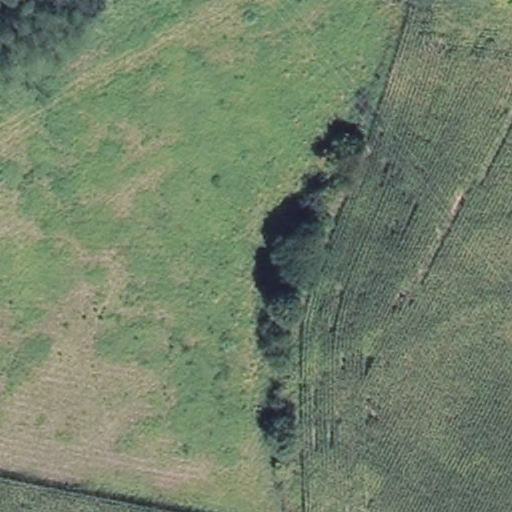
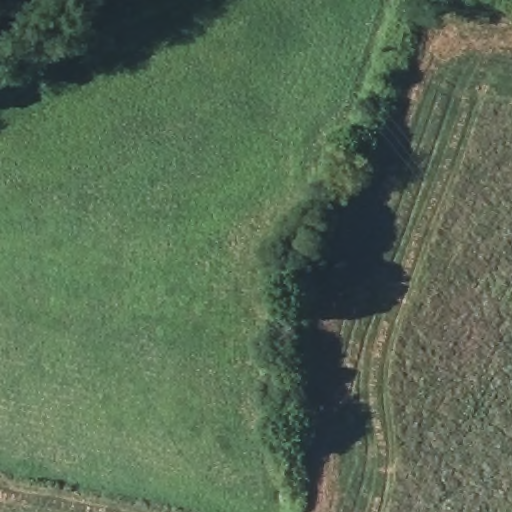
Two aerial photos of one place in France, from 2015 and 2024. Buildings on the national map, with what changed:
[]

